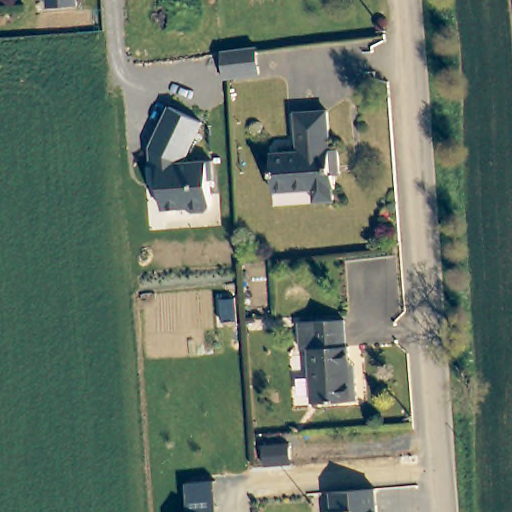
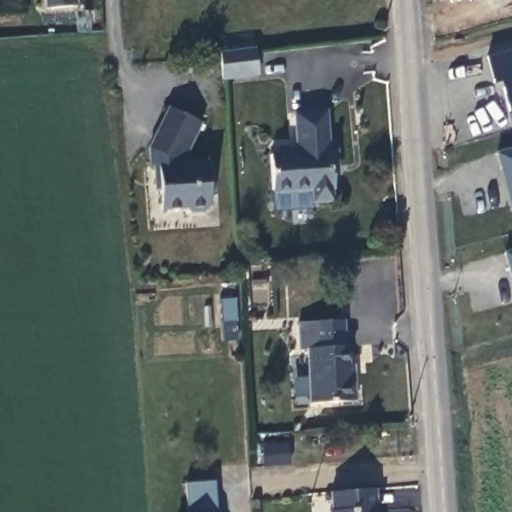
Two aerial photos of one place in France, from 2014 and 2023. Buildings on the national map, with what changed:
unchanged [(75,4),(46,5),(46,0),(75,0),(75,4)]
unchanged [(256,76),(219,80),(217,53),(254,49),(256,76)]
unchanged [(201,124),(182,166),(211,164),(212,182),(208,183),(210,207),(205,212),(190,214),(185,210),(162,211),(160,185),(156,185),(155,167),(151,168),(150,150),(169,109),(201,124)]
unchanged [(340,163),(330,165),(334,169),(335,182),(333,186),(334,197),(315,199),(314,187),(276,188),(275,153),(299,151),(296,112),(328,110),(330,147),(339,147),(340,163)]
new [(497,153),(512,148),(512,209),(497,153)]
new [(504,251),(512,249),(512,282),(504,251)]
unchanged [(342,346),(346,346),(346,378),(352,378),(353,401),(308,402),(305,350),(297,349),(296,321),(341,320),(342,346)]
unchanged [(290,467),(265,469),(264,450),(289,447),(290,467)]
unchanged [(215,480),(218,512),(188,512),(185,482),(215,480)]
unchanged [(378,512),(335,512),(333,495),(376,492),(378,512)]

